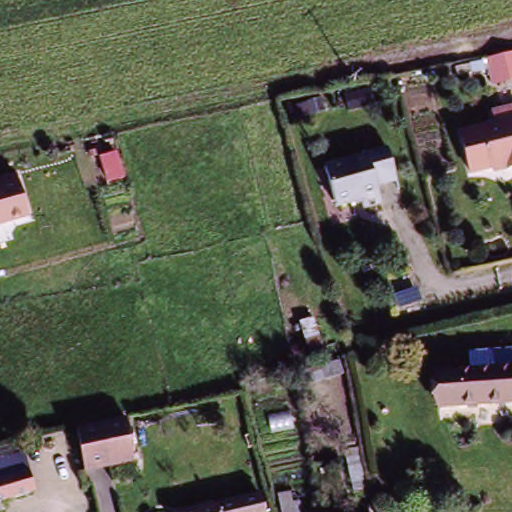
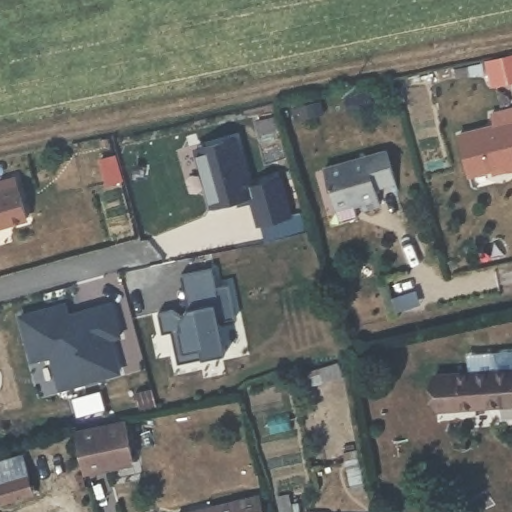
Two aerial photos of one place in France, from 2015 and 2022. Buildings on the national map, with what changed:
unchanged [(512,126),(512,169),(496,172),(495,169),(464,177),(452,141),(484,132),(479,116),(507,109),(512,126)]
new [(237,137),(250,186),(280,178),(291,215),(259,224),(251,194),(212,205),(197,149),(237,137)]
unchanged [(392,182),(369,189),(374,203),(355,209),(353,202),(329,210),(315,167),(381,148),(392,182)]
unchanged [(0,230),(0,183),(17,177),(30,222),(0,230)]
new [(173,309),(182,316),(188,307),(181,275),(212,268),(217,287),(229,284),(236,317),(219,321),(226,353),(179,363),(172,331),(163,332),(159,312),(173,309)]
new [(64,303),(69,323),(77,322),(75,313),(109,303),(118,335),(108,337),(117,371),(60,387),(50,353),(32,358),(20,315),(64,303)]
new [(311,375),(336,370),(340,382),(319,390),(304,393),(299,379),(311,375)]
unchanged [(439,415),(437,376),(512,371),(512,408),(439,415)]
unchanged [(127,423),(139,467),(117,472),(90,478),(80,436),(107,428),(127,423)]
new [(357,449),(365,488),(351,492),(343,452),(357,449)]
unchanged [(32,489),(0,502),(0,474),(22,466),(32,489)]
new [(293,512),(279,512),(277,497),(290,495),(293,512)]
unchanged [(257,512),(240,512),(256,508),(257,512)]

